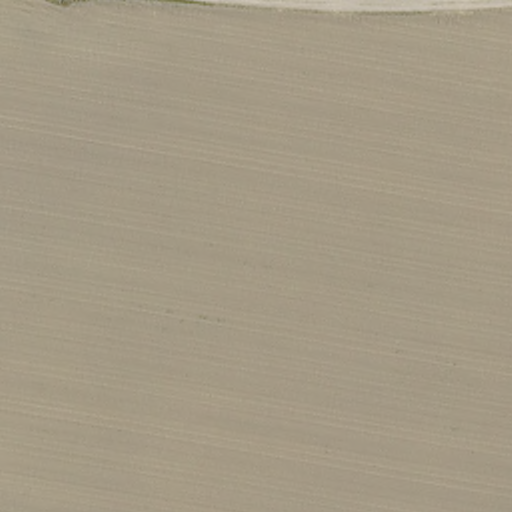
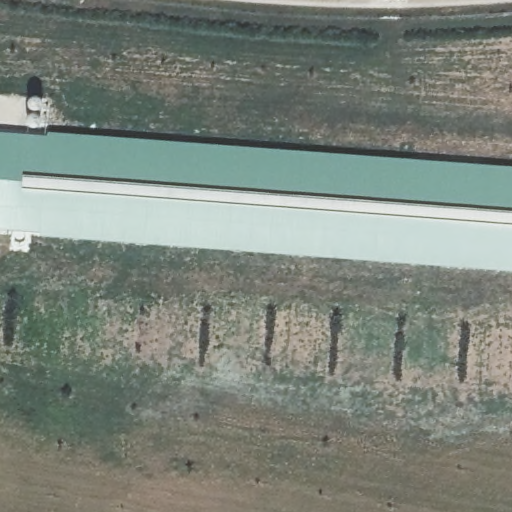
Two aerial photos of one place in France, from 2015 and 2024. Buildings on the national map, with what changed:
new [(49,134),(512,169),(512,276),(493,275),(0,232),(0,134),(49,137),(49,134)]

